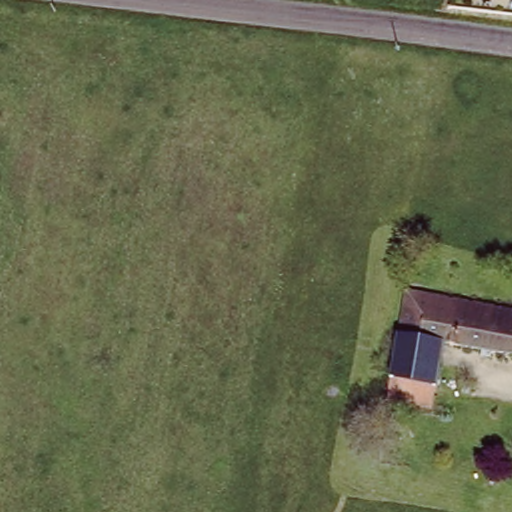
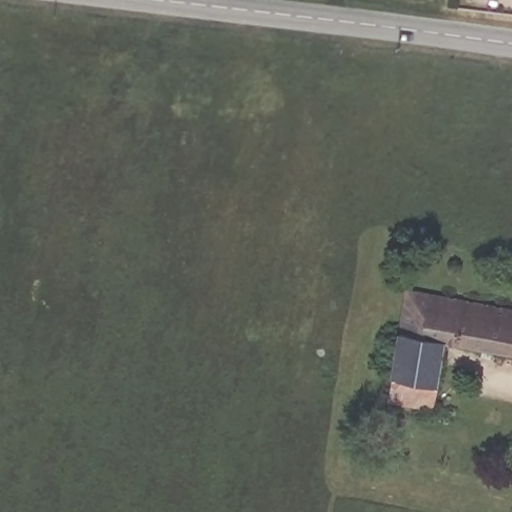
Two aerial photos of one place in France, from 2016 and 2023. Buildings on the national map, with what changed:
unchanged [(512,312),(512,355),(442,344),(400,337),(407,294),(512,312)]
unchanged [(389,401),(400,337),(442,344),(431,408),(389,401)]

